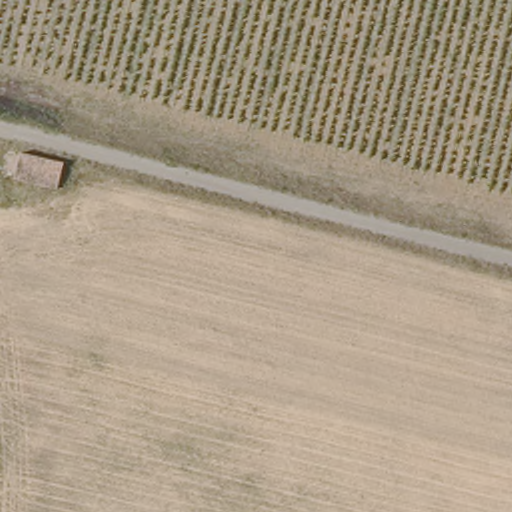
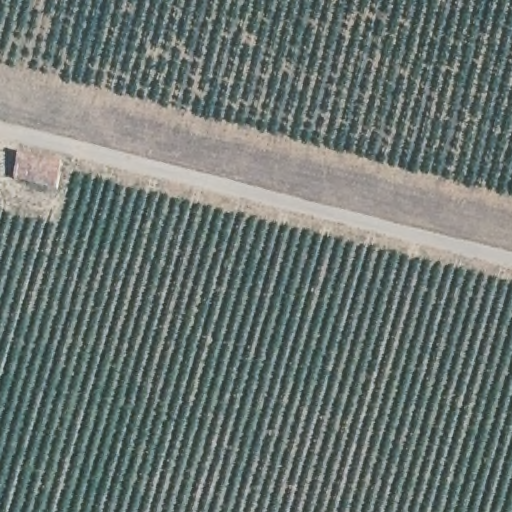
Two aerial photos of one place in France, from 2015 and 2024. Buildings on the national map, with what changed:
unchanged [(61,188),(34,183),(16,180),(20,152),(39,156),(67,164),(61,188)]

